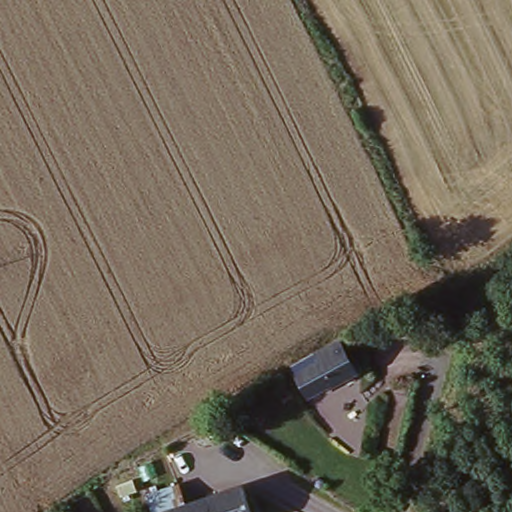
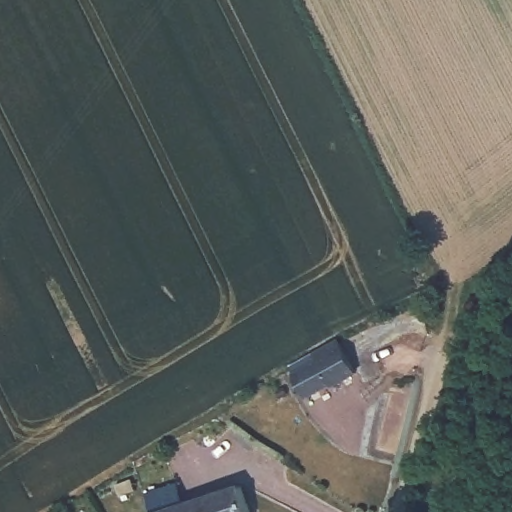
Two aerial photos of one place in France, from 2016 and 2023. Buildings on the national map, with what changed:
unchanged [(353,368),(345,375),(350,383),(307,403),(292,378),(313,367),(307,356),(335,338),(353,368)]
unchanged [(178,478),(182,489),(189,486),(197,501),(241,484),(252,512),(147,512),(145,508),(149,506),(143,489),(178,478)]

